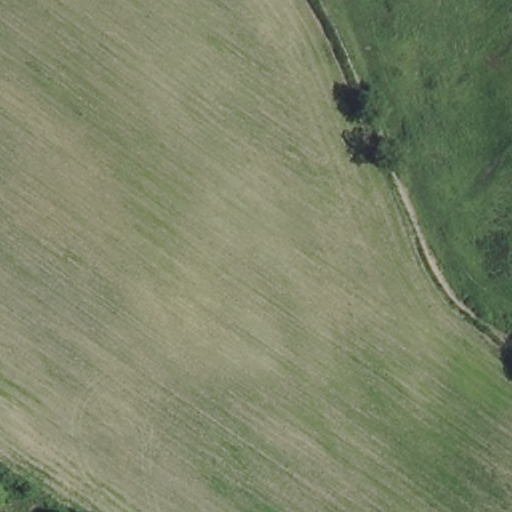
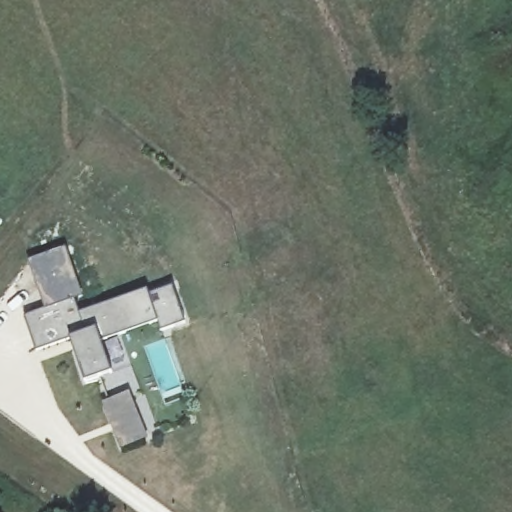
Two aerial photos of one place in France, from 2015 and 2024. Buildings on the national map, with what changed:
new [(23,315),(74,298),(79,312),(147,290),(149,295),(172,286),(184,322),(161,330),(158,321),(101,340),(112,371),(85,381),(69,339),(35,350),(23,315)]
new [(102,402),(129,391),(148,438),(121,450),(102,402)]

